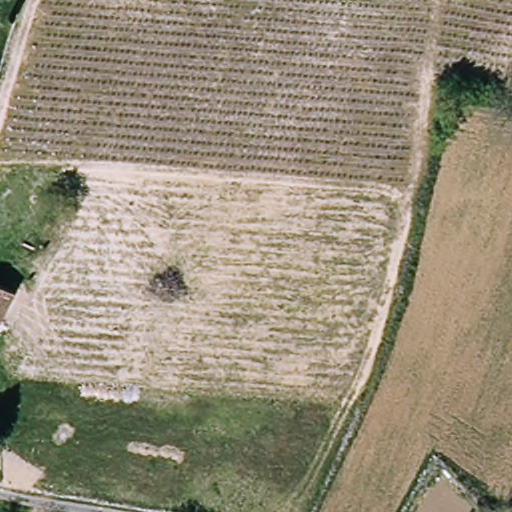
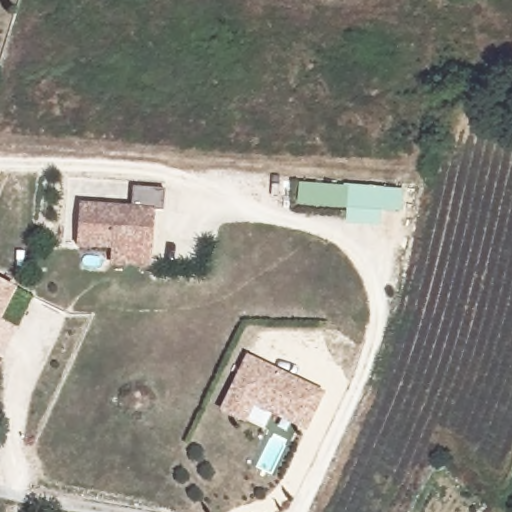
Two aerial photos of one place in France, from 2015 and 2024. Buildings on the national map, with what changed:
new [(382,226),(347,224),(348,207),(298,204),(300,181),(404,189),(402,210),(383,210),(382,226)]
new [(164,210),(156,210),(152,268),(113,266),(113,249),(77,247),(82,204),(134,207),(134,188),(165,190),(164,210)]
unchanged [(13,285),(0,313),(0,279),(13,285)]
new [(307,430),(255,407),(246,425),(221,412),(247,356),(326,393),(307,430)]

